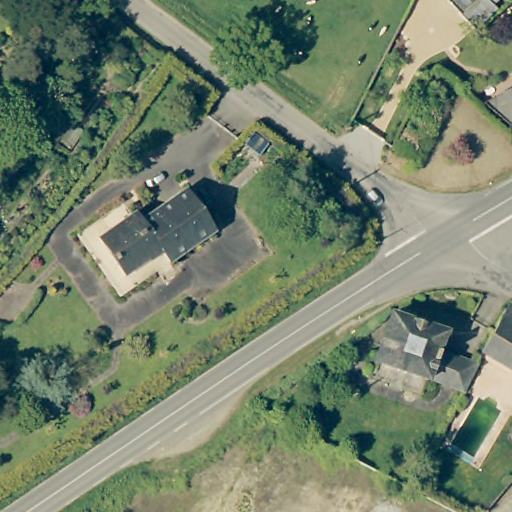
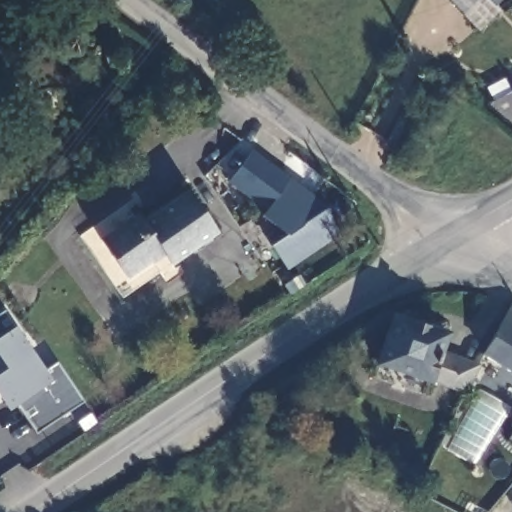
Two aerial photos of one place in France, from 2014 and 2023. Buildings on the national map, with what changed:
unchanged [(507,0),(500,7),(485,27),(448,0),(507,0)]
unchanged [(512,91),(512,124),(491,101),(512,91)]
new [(286,232),(263,215),(266,209),(225,182),(248,148),(328,207),(337,236),(285,268),(270,245),(286,232)]
unchanged [(140,210),(146,218),(192,187),(221,232),(173,263),(161,247),(151,254),(155,259),(134,273),(128,277),(101,237),(106,232),(140,210)]
unchanged [(512,368),(485,353),(511,304),(512,304),(512,368)]
new [(36,432),(17,402),(7,410),(0,399),(0,371),(5,368),(0,361),(0,312),(5,309),(16,325),(45,369),(57,362),(81,401),(36,432)]
unchanged [(430,382),(373,364),(390,315),(446,330),(442,344),(431,378),(430,382)]
unchanged [(442,344),(475,365),(460,397),(431,378),(442,344)]

